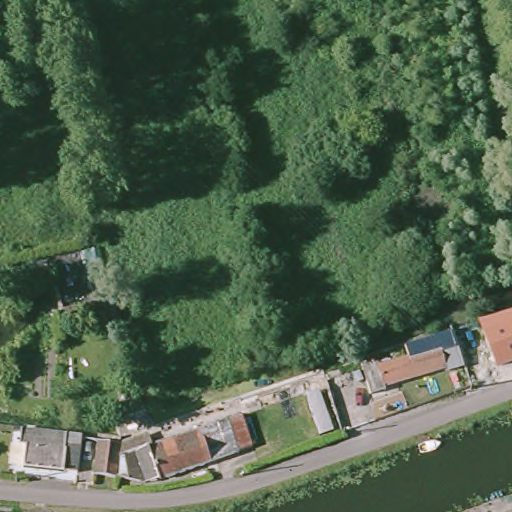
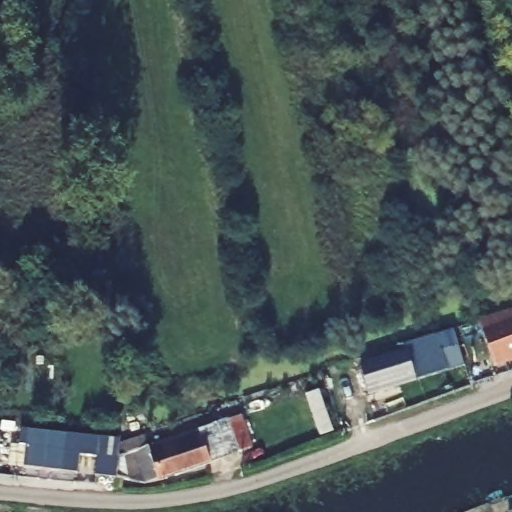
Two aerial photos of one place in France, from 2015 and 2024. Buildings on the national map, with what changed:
unchanged [(499,365),(486,331),(512,321),(512,360),(499,365)]
unchanged [(384,386),(385,390),(370,395),(362,368),(377,363),(378,367),(409,358),(405,347),(436,336),(435,331),(451,326),(457,345),(440,350),(445,367),(384,386)]
unchanged [(104,442),(125,445),(153,435),(156,445),(204,429),(204,430),(232,420),(232,421),(247,416),(257,448),(242,452),(243,455),(215,463),(164,481),(150,484),(122,477),(100,476),(104,442)]
unchanged [(12,446),(20,446),(21,430),(66,435),(65,445),(80,447),(77,474),(23,468),(10,467),(12,446)]

